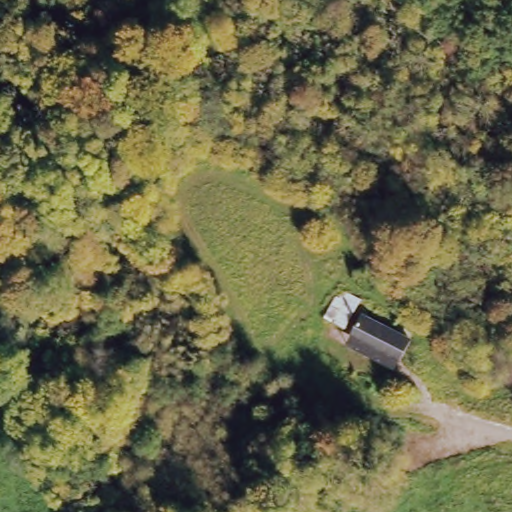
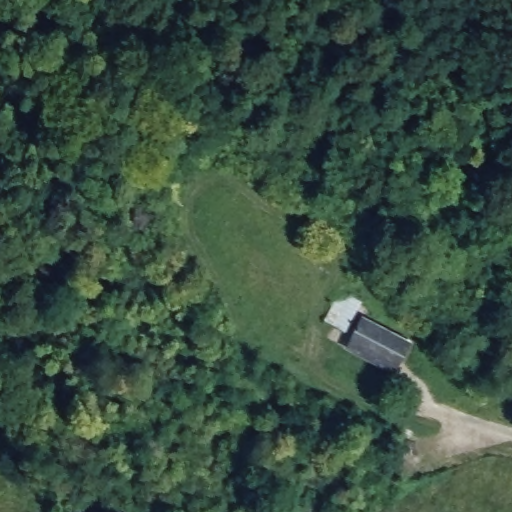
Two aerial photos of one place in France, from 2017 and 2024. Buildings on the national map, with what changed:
unchanged [(386,373),(344,347),(363,315),(406,340),(386,373)]

